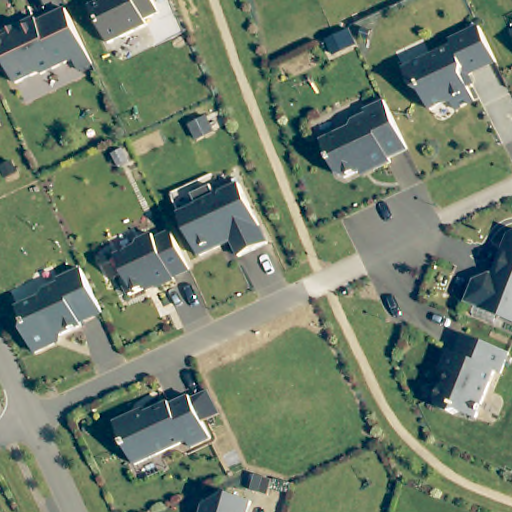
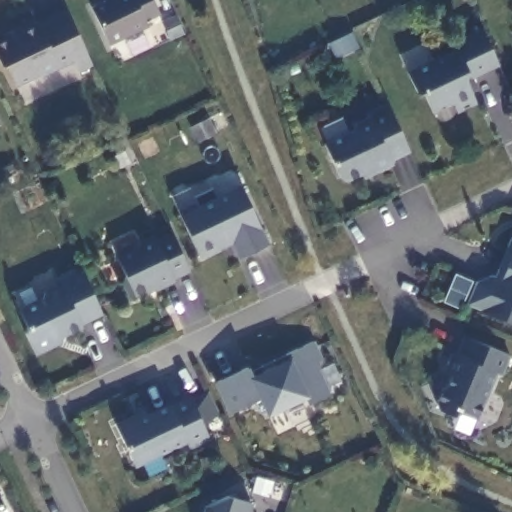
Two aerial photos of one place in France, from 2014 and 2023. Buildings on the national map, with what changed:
unchanged [(151,17),(153,23),(114,41),(96,3),(103,0),(161,0),(165,10),(151,17)]
unchanged [(41,21),(43,25),(71,11),(97,66),(84,72),(79,61),(46,76),(43,75),(21,86),(13,68),(6,65),(0,52),(0,46),(23,35),(21,30),(41,21)]
unchanged [(503,65),(475,78),(473,85),(481,104),(462,113),(458,103),(437,113),(429,95),(421,92),(412,73),(461,50),(458,44),(486,30),(503,65)]
unchanged [(414,151),(395,161),(397,165),(380,173),(378,168),(352,181),(345,179),(329,145),(357,131),(359,125),(374,118),(372,114),(392,104),(414,151)]
unchanged [(0,127),(0,125),(1,127),(0,127)]
unchanged [(274,245),(245,259),(235,239),(225,244),(227,248),(206,258),(186,217),(204,208),(199,197),(218,188),(222,198),(246,187),(274,245)]
unchanged [(196,266),(179,274),(180,276),(162,285),(161,281),(136,293),(129,278),(131,272),(123,255),(142,246),(144,240),(159,233),(162,237),(178,229),(196,266)]
unchanged [(472,301),(481,278),(498,271),(503,273),(512,251),(512,317),(472,301)]
unchanged [(108,310),(85,321),(41,351),(31,329),(33,323),(25,307),(52,294),(50,289),(67,281),(65,278),(88,267),(108,310)]
unchanged [(512,354),(512,366),(507,377),(501,375),(482,421),(465,415),(459,417),(445,412),(442,405),(449,390),(452,388),(457,378),(449,375),(457,355),(462,357),(470,338),(512,354)]
new [(309,407),(306,398),(268,416),(258,398),(228,414),(213,384),(250,366),(256,372),(287,359),(284,355),(318,340),(326,357),(319,361),(334,393),(309,407)]
unchanged [(211,441),(190,451),(187,444),(136,468),(116,426),(135,418),(137,422),(171,406),(172,409),(191,400),(211,441)]
unchanged [(257,505),(255,512),(209,512),(210,509),(233,498),(257,505)]
unchanged [(0,510),(1,512),(0,512),(0,510)]

